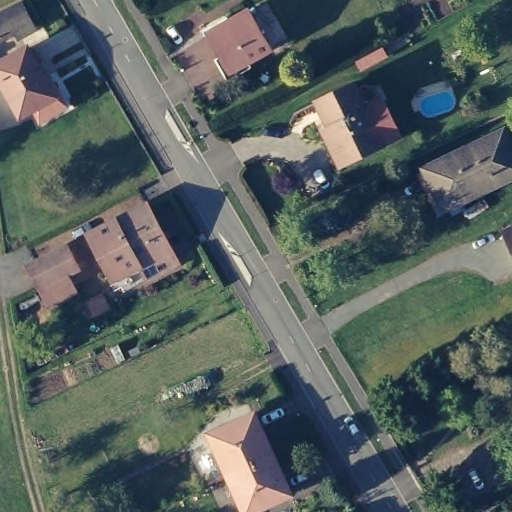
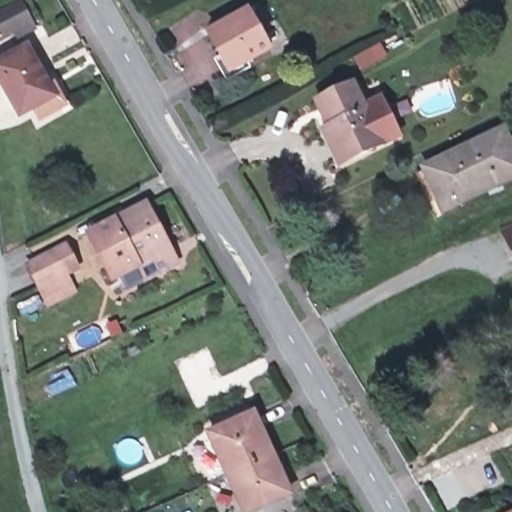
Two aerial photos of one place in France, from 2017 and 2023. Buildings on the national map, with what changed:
unchanged [(33,24),(20,31),(16,25),(0,33),(0,32),(0,12),(22,1),(33,24)]
unchanged [(273,48),(234,72),(213,34),(210,28),(231,15),(235,21),(253,10),(273,48)]
unchanged [(42,106),(40,100),(15,114),(0,85),(0,59),(24,47),(44,86),(50,83),(57,98),(42,106)]
unchanged [(317,133),(325,128),(314,102),(351,84),(380,145),(343,162),(333,166),(317,133)]
unchanged [(498,136),(512,164),(512,178),(439,213),(422,174),(498,136)]
unchanged [(177,264),(135,287),(129,275),(111,284),(86,228),(150,199),(177,264)]
unchanged [(507,232),(512,230),(512,243),(507,232)]
unchanged [(63,245),(76,269),(36,290),(24,267),(63,245)]
unchanged [(233,475),(215,434),(258,416),(276,455),(233,475)]
unchanged [(253,512),(251,512),(233,475),(276,455),(295,494),(253,512)]
unchanged [(511,512),(512,511),(512,512),(511,512)]

